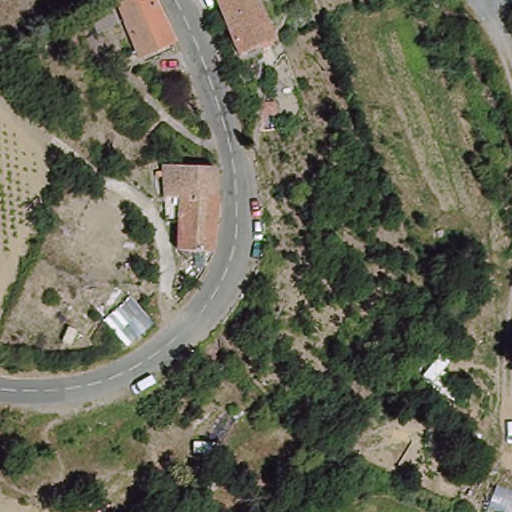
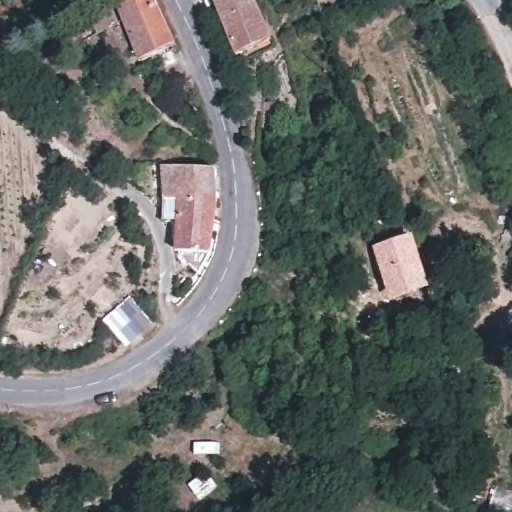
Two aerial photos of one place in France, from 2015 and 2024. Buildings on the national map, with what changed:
unchanged [(115,0),(147,0),(172,49),(138,67),(106,4),(115,0)]
unchanged [(238,60),(212,0),(255,0),(274,43),(238,60)]
unchanged [(213,183),(216,255),(180,256),(175,207),(158,208),(156,172),(163,169),(171,168),(208,166),(213,183)]
new [(374,245),(414,233),(431,282),(389,295),(374,245)]
unchanged [(149,325),(128,352),(104,326),(124,302),(149,325)]

